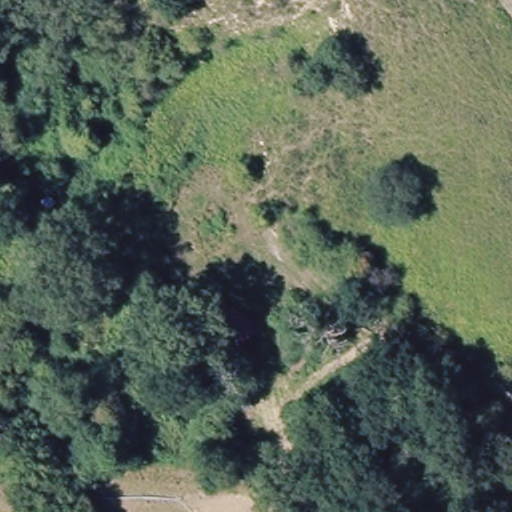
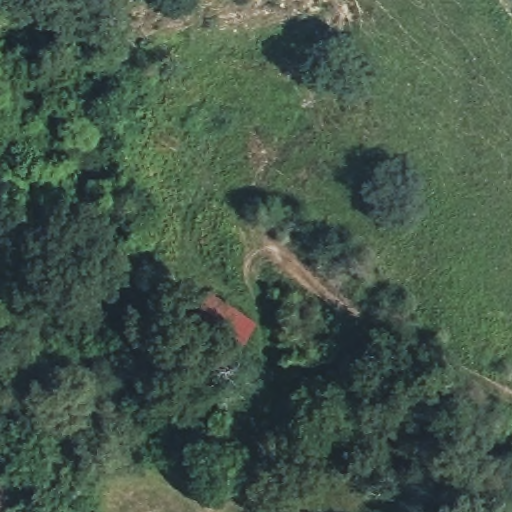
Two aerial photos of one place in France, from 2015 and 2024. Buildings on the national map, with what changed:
unchanged [(197,317),(214,293),(258,324),(242,347),(216,329),(197,317)]

